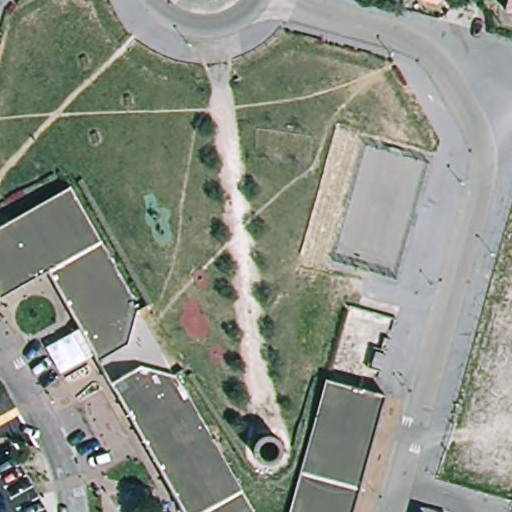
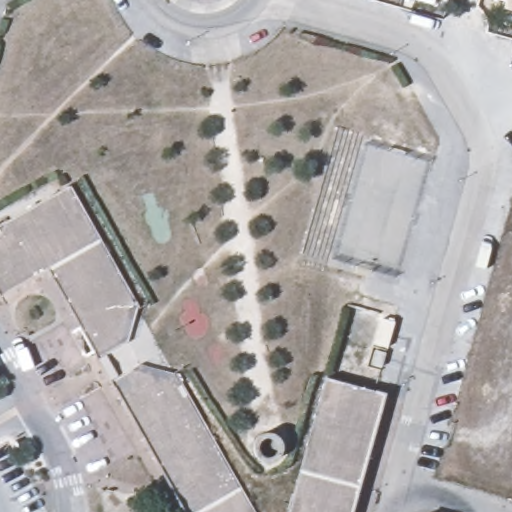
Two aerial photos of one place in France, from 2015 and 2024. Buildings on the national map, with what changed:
unchanged [(444,1),(441,0),(444,0),(444,1)]
unchanged [(502,9),(503,2),(495,0),(512,0),(512,11),(502,9)]
unchanged [(0,287),(0,193),(77,151),(164,301),(150,336),(113,357),(56,260),(0,287)]
unchanged [(4,298),(0,292),(0,287),(56,260),(113,357),(101,363),(50,276),(4,298)]
unchanged [(258,512),(194,512),(113,374),(142,357),(171,365),(258,512)]
unchanged [(379,384),(345,512),(288,512),(326,372),(379,384)]
unchanged [(113,374),(194,512),(181,512),(104,379),(113,374)]
unchanged [(387,386),(354,512),(345,512),(379,384),(387,386)]

